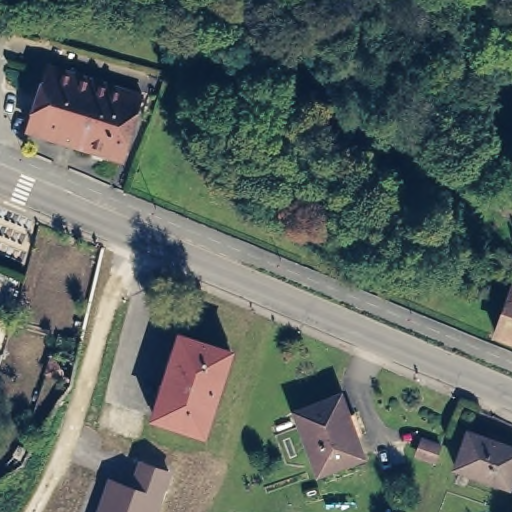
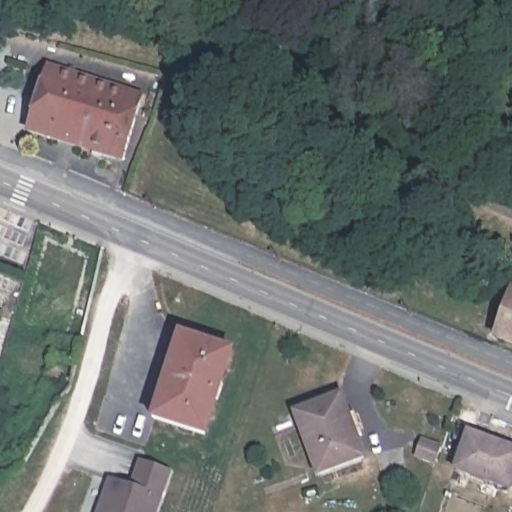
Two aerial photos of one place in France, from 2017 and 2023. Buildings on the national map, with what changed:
unchanged [(46,45),(42,57),(22,52),(26,39),(46,45)]
unchanged [(143,99),(125,164),(31,137),(48,72),(143,99)]
unchanged [(238,142),(234,154),(190,140),(193,127),(238,142)]
unchanged [(500,336),(512,301),(512,340),(500,336)]
unchanged [(160,421),(163,410),(186,340),(237,356),(215,425),(211,437),(160,421)]
unchanged [(75,383),(51,377),(58,360),(80,364),(75,383)]
unchanged [(360,456),(317,471),(295,409),(338,393),(345,413),(352,412),(360,433),(353,436),(360,456)]
unchanged [(470,433),(512,449),(512,480),(508,488),(460,470),(455,468),(463,453),(470,433)]
unchanged [(443,460),(424,452),(430,440),(448,447),(443,460)]
unchanged [(97,512),(108,478),(130,485),(138,462),(173,472),(158,512),(97,512)]

